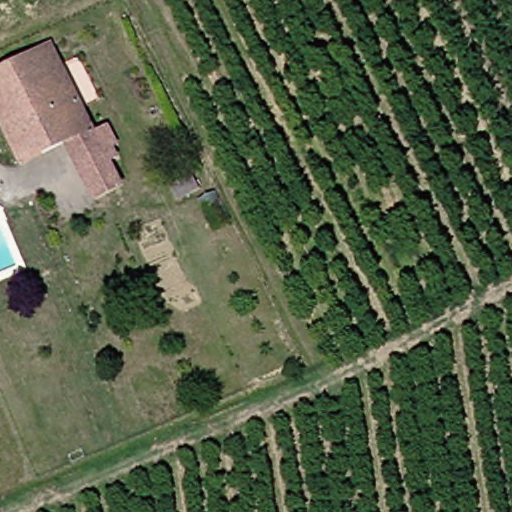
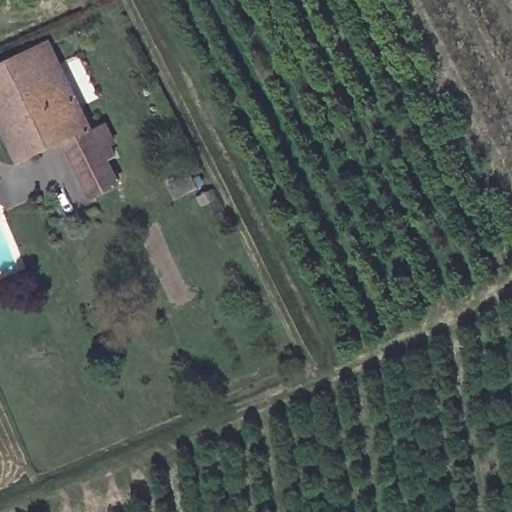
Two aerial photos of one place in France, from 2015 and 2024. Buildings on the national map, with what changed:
unchanged [(60,148),(47,125),(5,147),(0,138),(0,59),(42,40),(97,150),(69,165),(60,148)]
unchanged [(16,169),(5,147),(47,125),(60,148),(16,169)]
unchanged [(97,150),(104,147),(112,164),(107,167),(117,187),(87,202),(69,165),(97,150)]

